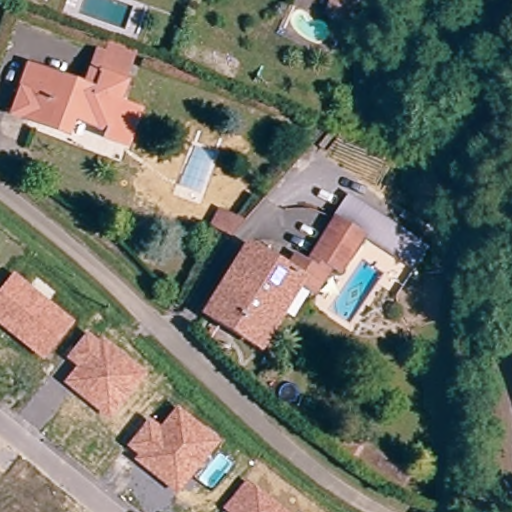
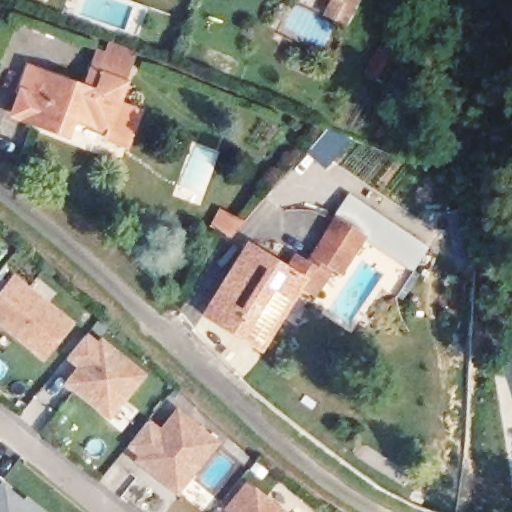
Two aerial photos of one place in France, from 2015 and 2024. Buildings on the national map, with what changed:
unchanged [(325,12),(331,0),(355,0),(344,22),(341,29),(322,19),(325,12)]
unchanged [(102,136),(68,122),(62,139),(14,119),(21,97),(27,81),(30,74),(45,80),(80,94),(88,78),(93,81),(101,61),(104,53),(105,49),(131,60),(129,65),(126,71),(119,91),(102,136)]
unchanged [(392,66),(380,88),(364,79),(376,57),(392,66)]
unchanged [(130,82),(122,101),(145,109),(128,148),(102,136),(119,91),(123,79),(130,82)]
unchanged [(345,200),(431,257),(427,262),(418,277),(369,244),(333,220),(345,200)]
unchanged [(229,240),(219,235),(211,232),(219,215),(241,226),(229,240)]
unchanged [(312,254),(333,220),(369,244),(348,278),(339,272),(328,290),(302,272),(312,254)]
unchanged [(314,298),(295,284),(299,277),(288,269),(282,278),(245,254),(252,242),(288,264),(294,252),(309,260),(302,272),(324,287),(314,298)]
unchanged [(257,349),(208,317),(245,254),(282,278),(288,269),(299,277),(257,349)]
unchanged [(74,321),(43,360),(0,325),(0,290),(14,272),(74,321)]
unchanged [(147,372),(110,420),(64,383),(76,367),(66,358),(87,332),(98,341),(102,336),(147,372)]
unchanged [(221,441),(177,494),(133,460),(137,454),(127,445),(149,418),(160,426),(177,407),(221,441)]
unchanged [(286,512),(227,512),(223,508),(247,480),(286,512)]
new [(27,503),(30,499),(35,502),(47,512),(0,512),(0,491),(5,485),(27,503)]

